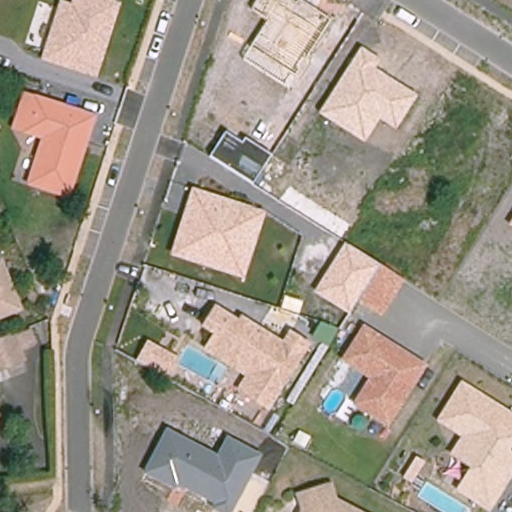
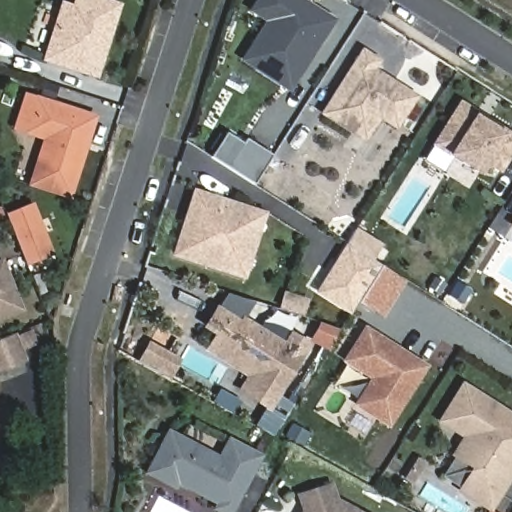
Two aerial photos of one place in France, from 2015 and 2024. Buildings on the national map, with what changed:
unchanged [(96,78),(40,60),(59,0),(71,4),(72,0),(112,0),(120,2),(96,78)]
unchanged [(286,88),(241,59),(266,20),(250,8),(256,0),(299,0),(329,20),(286,88)]
unchanged [(374,69),(417,96),(396,129),(379,119),(365,142),(318,112),(359,47),(378,60),(374,69)]
unchanged [(95,116),(69,198),(26,186),(40,139),(21,134),(9,129),(22,92),(35,95),(95,116)]
new [(501,174),(487,165),(480,176),(445,154),(432,145),(460,99),(512,133),(512,155),(501,174)]
unchanged [(253,185),(210,157),(226,132),(242,143),(245,138),(271,155),(253,185)]
unchanged [(170,256),(191,188),(264,212),(243,279),(170,256)]
new [(30,204),(49,250),(23,260),(4,215),(30,204)]
unchanged [(509,225),(512,220),(512,227),(509,225)]
unchanged [(381,317),(356,301),(348,314),(313,293),(344,243),(378,264),(405,280),(381,317)]
unchanged [(0,320),(0,259),(3,257),(24,310),(0,320)]
unchanged [(269,410),(236,391),(244,376),(203,350),(212,334),(201,327),(214,305),(238,319),(241,314),(282,340),(289,331),(310,344),(269,410)]
unchanged [(352,404),(367,379),(340,361),(362,326),(426,366),(387,428),(352,404)]
unchanged [(11,336),(30,328),(38,342),(22,349),(24,357),(0,372),(0,335),(9,330),(11,336)]
new [(165,376),(158,372),(136,361),(145,343),(167,355),(174,358),(165,376)]
unchanged [(489,511),(454,491),(468,470),(449,456),(459,438),(435,422),(460,381),(512,413),(512,446),(510,449),(512,451),(512,476),(489,511)]
unchanged [(216,512),(211,509),(213,504),(177,485),(175,489),(142,472),(165,428),(215,454),(226,437),(262,455),(233,512),(216,512)]
unchanged [(301,493),(332,484),(336,499),(361,512),(304,512),(306,509),(301,493)]

